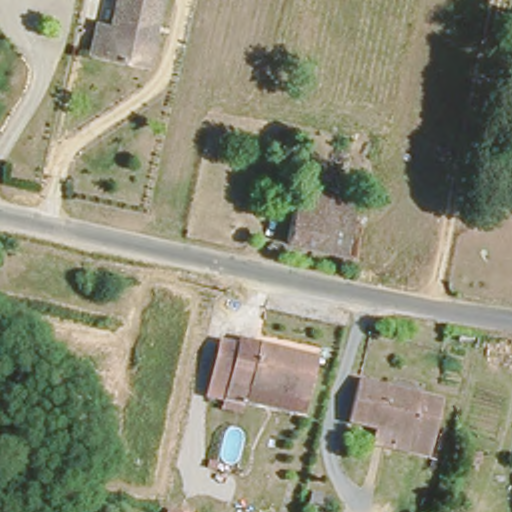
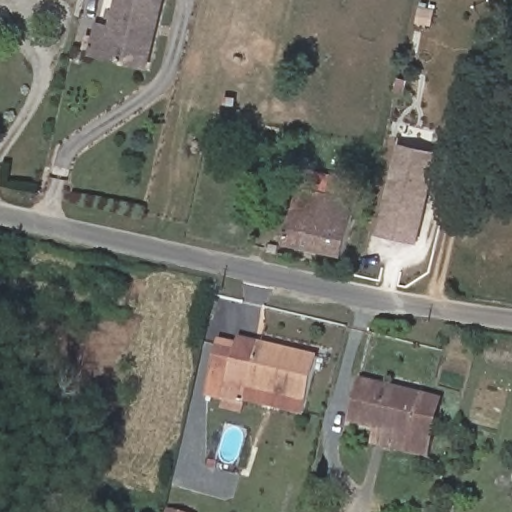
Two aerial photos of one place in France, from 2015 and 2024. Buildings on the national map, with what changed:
unchanged [(138,69),(85,56),(82,55),(89,26),(92,27),(103,30),(110,0),(154,0),(148,27),(146,35),(138,69)]
new [(396,144),(434,153),(413,242),(375,233),(396,144)]
unchanged [(341,254),(283,242),(289,206),(293,188),(304,190),(308,169),(361,182),(357,203),(352,202),(341,254)]
unchanged [(220,402),(222,394),(229,365),(210,360),(215,341),(217,335),(234,339),(234,334),(315,354),(304,397),(302,410),(243,395),(242,399),(240,407),(220,402)]
unchanged [(394,430),(364,421),(374,380),(440,398),(424,455),(408,450),(389,445),(394,430)]
unchanged [(165,512),(168,504),(197,511),(196,512),(165,512)]
unchanged [(301,512),(303,504),(331,509),(330,512),(301,512)]

